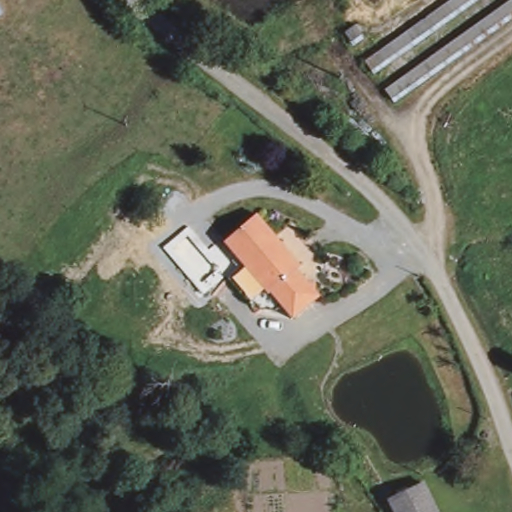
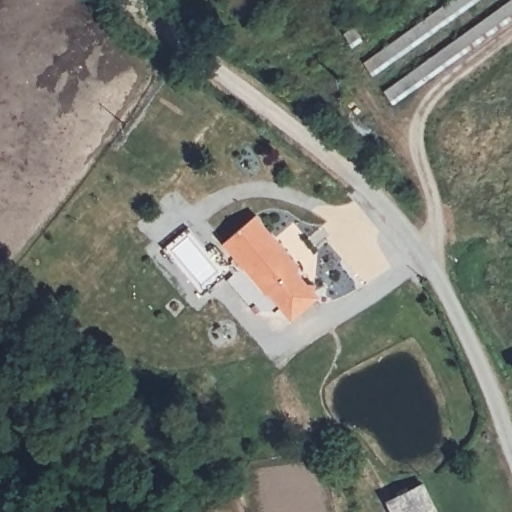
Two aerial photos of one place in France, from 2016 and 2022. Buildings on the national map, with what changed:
unchanged [(486,0),(376,79),(363,64),(452,0),(486,0)]
unchanged [(512,0),(512,23),(396,108),(382,92),(511,0),(512,0)]
unchanged [(231,257),(235,252),(223,238),(257,209),(302,262),(298,265),(310,279),(317,279),(316,286),(321,292),(294,314),(283,301),(277,306),(260,306),(255,301),(251,304),(227,275),(238,266),(231,257)]
unchanged [(389,504),(417,489),(427,480),(442,512),(394,512),(389,504)]

